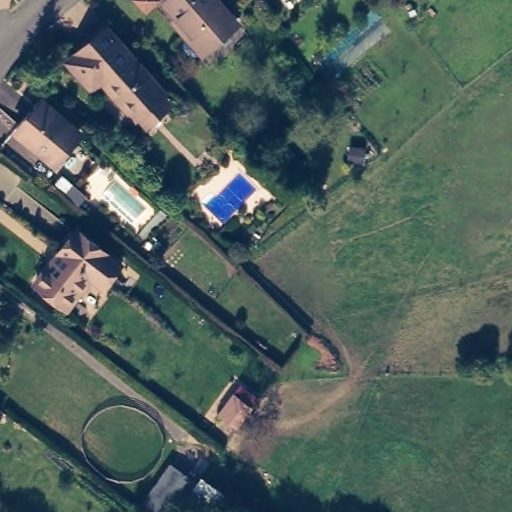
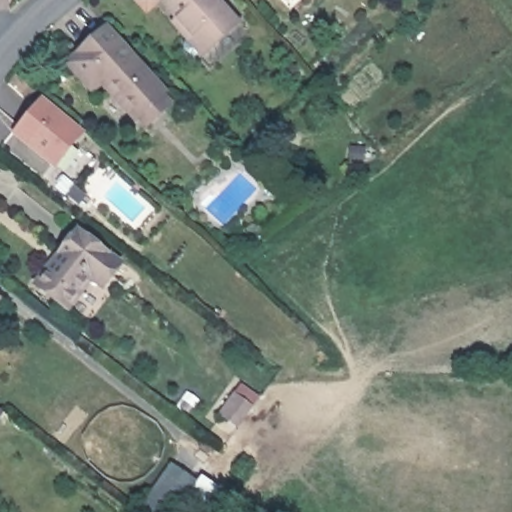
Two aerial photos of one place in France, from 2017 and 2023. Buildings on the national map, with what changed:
unchanged [(145,13),(132,0),(133,0),(156,0),(157,1),(145,13)]
unchanged [(164,6),(171,0),(216,0),(235,22),(204,50),(197,55),(171,26),(177,20),(164,6)]
unchanged [(140,126),(132,118),(130,120),(96,82),(86,90),(62,65),(102,29),(160,92),(157,95),(165,103),(140,126)]
unchanged [(55,169),(35,153),(38,149),(17,132),(42,101),(81,134),(55,169)]
unchanged [(72,227),(111,259),(94,281),(87,275),(63,306),(30,281),(72,227)]
unchanged [(2,411),(0,413),(0,410),(2,411)]
unchanged [(171,512),(152,512),(142,504),(152,491),(175,458),(185,466),(197,475),(171,512)]

